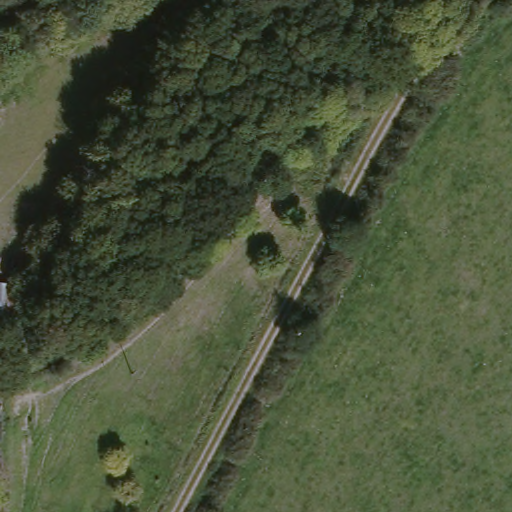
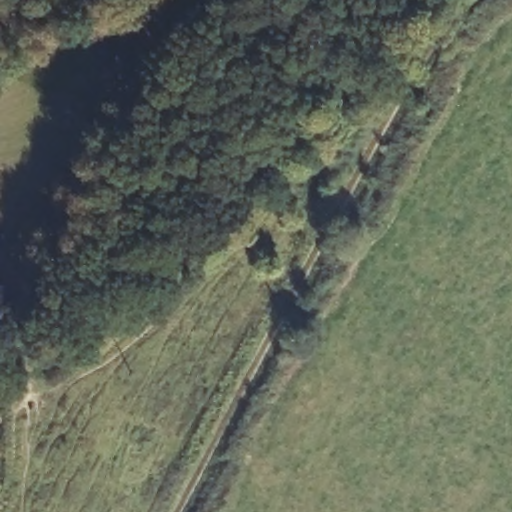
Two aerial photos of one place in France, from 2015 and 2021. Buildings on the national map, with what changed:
unchanged [(0,284),(7,284),(4,324),(0,324),(0,284)]

